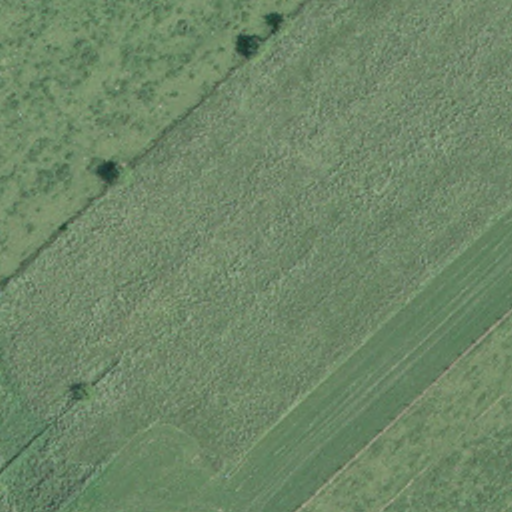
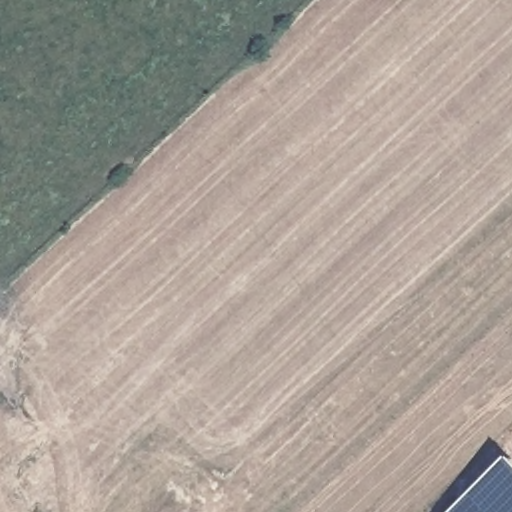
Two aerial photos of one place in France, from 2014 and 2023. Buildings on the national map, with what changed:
new [(512,458),(512,512),(454,512),(512,458)]

